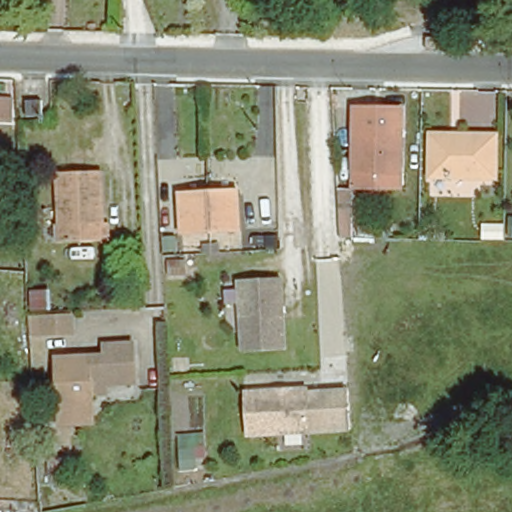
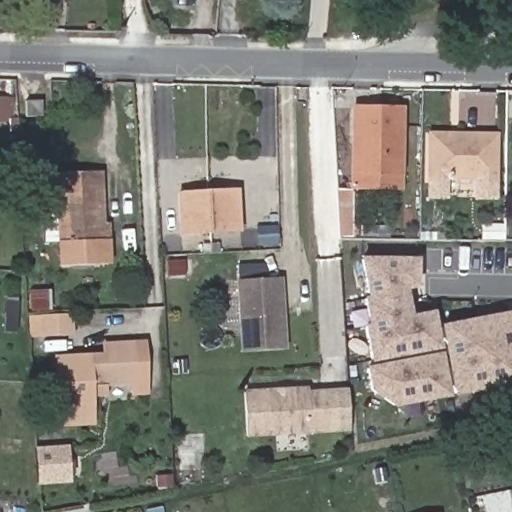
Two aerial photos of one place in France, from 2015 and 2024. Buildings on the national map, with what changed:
unchanged [(0,119),(0,98),(1,98),(18,99),(19,120),(0,119)]
unchanged [(26,114),(26,102),(41,101),(42,114),(26,114)]
unchanged [(352,185),(352,172),(357,172),(357,141),(352,141),(353,107),(358,107),(400,108),(399,174),(398,186),(352,185)]
unchanged [(491,177),(427,176),(429,145),(429,133),(457,134),(492,135),(491,177)]
unchanged [(108,239),(59,241),(56,172),(99,171),(101,226),(107,226),(108,239)]
unchanged [(237,189),(238,230),(180,233),(178,191),(237,189)]
unchanged [(340,221),(350,221),(350,237),(340,237),(340,221)]
unchanged [(483,226),(503,226),(503,239),(503,241),(501,241),(483,241),(483,226)]
new [(419,259),(418,285),(406,288),(412,317),(434,313),(440,347),(373,358),(367,324),(372,323),(367,297),(371,297),(365,257),(419,259)]
unchanged [(279,274),(286,346),(244,349),(237,278),(279,274)]
unchanged [(29,290),(53,289),(53,312),(31,313),(29,290)]
new [(512,382),(463,391),(451,324),(512,314),(512,382)]
unchanged [(42,316),(68,316),(69,332),(42,333),(28,334),(27,317),(42,316)]
unchanged [(83,414),(61,415),(59,351),(109,348),(108,338),(138,337),(140,377),(111,379),(111,389),(94,391),(94,397),(95,414),(83,414)]
new [(443,357),(450,397),(396,406),(373,390),(370,369),(443,357)]
unchanged [(244,392),(277,390),(278,394),(286,394),(290,389),(301,388),(307,393),(309,432),(246,436),(244,392)]
unchanged [(307,393),(305,391),(346,388),(349,430),(309,432),(307,393)]
unchanged [(194,449),(197,471),(179,474),(176,435),(205,432),(205,449),(194,449)]
unchanged [(64,482),(50,483),(47,459),(62,458),(64,482)]

